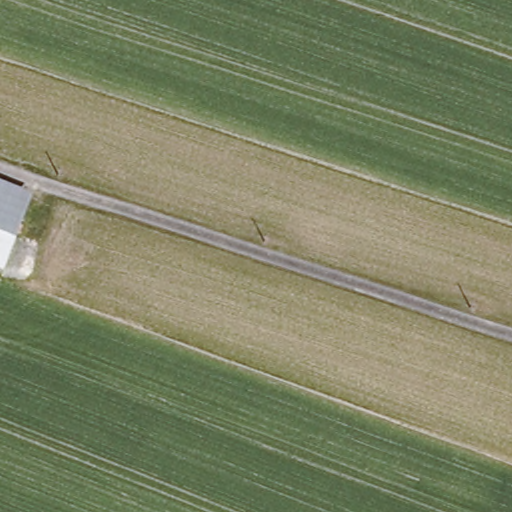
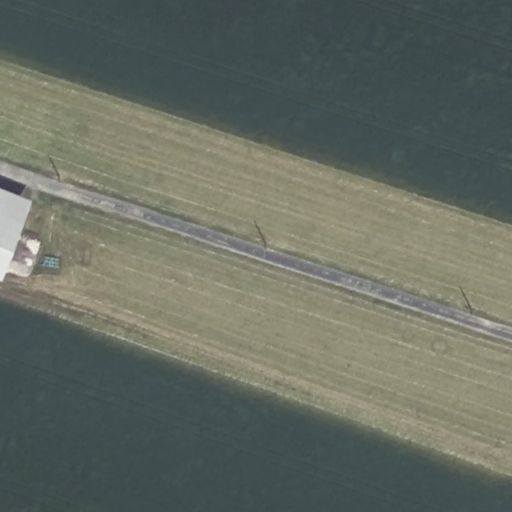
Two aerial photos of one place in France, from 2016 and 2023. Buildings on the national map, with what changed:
unchanged [(30,201),(31,202),(1,278),(0,277),(0,189),(30,201)]

